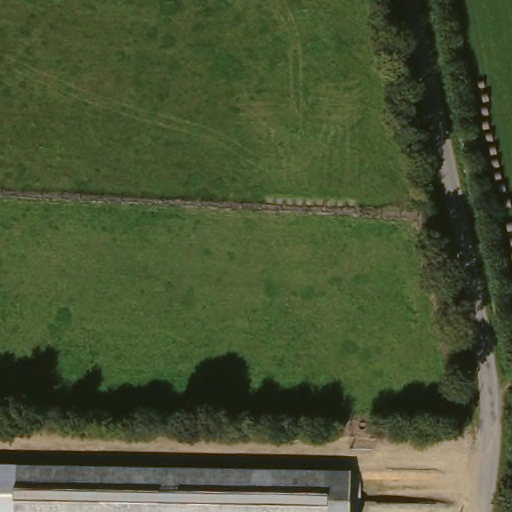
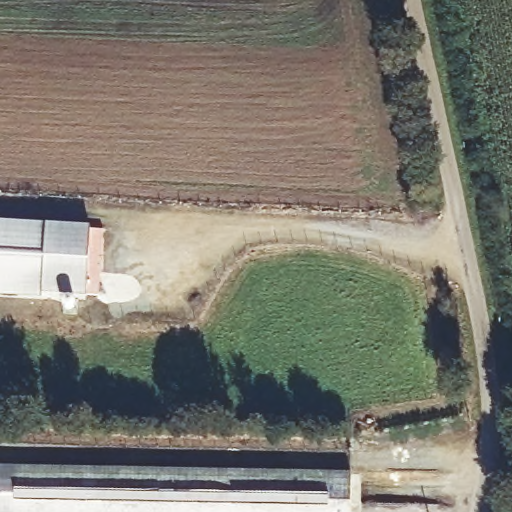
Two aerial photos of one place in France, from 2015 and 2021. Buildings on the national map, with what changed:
new [(64,294),(0,290),(0,223),(68,227),(64,294)]
unchanged [(357,512),(0,512),(0,463),(358,469),(357,512)]

